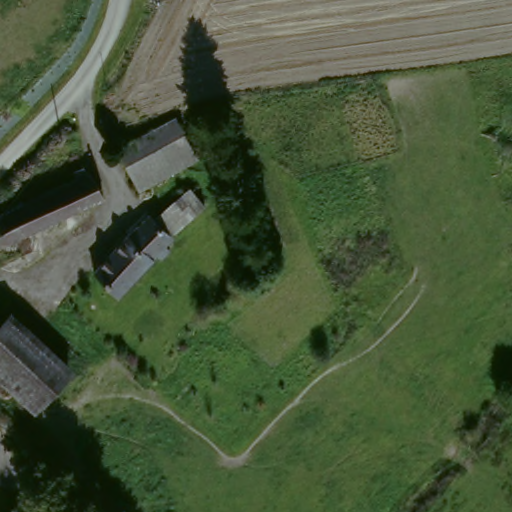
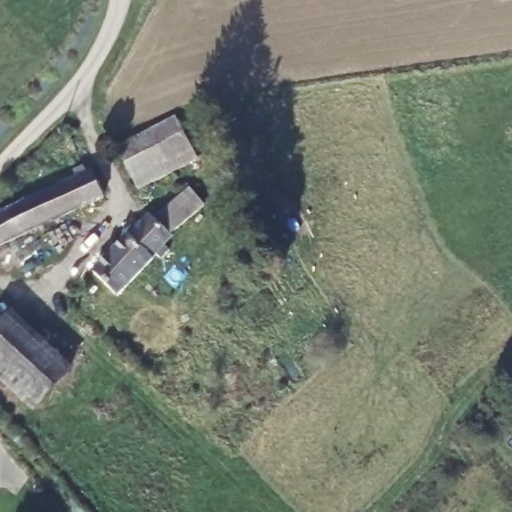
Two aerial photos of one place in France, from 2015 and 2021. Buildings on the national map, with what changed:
unchanged [(201,154),(144,188),(121,149),(179,118),(201,154)]
unchanged [(88,170),(103,197),(0,244),(0,212),(88,170)]
unchanged [(176,237),(119,295),(95,272),(151,217),(158,223),(192,189),(210,208),(176,237)]
unchanged [(7,314),(72,366),(38,406),(0,374),(0,322),(7,314)]

